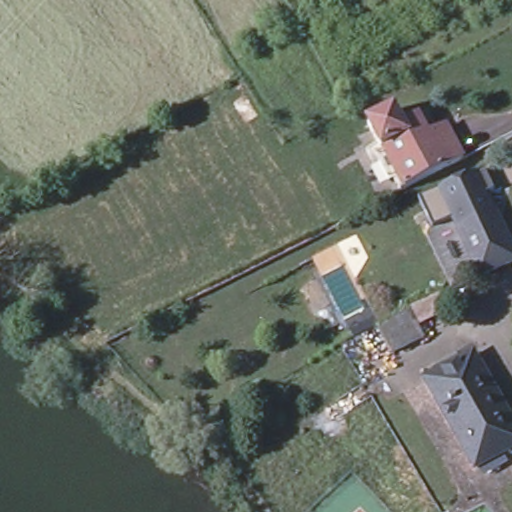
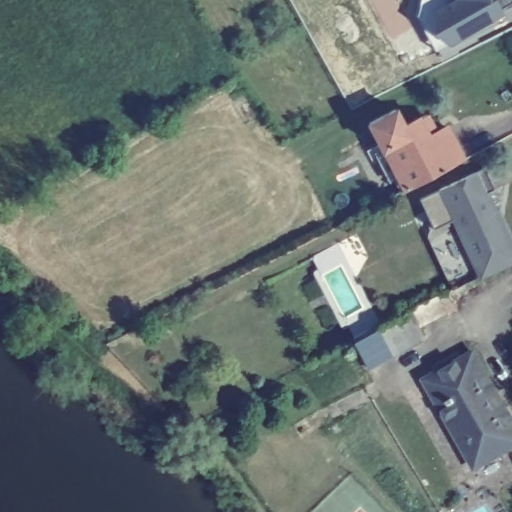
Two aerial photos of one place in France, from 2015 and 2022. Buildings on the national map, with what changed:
new [(420,0),(511,0),(512,1),(500,7),(504,14),(448,45),(446,42),(434,49),(415,16),(420,0)]
unchanged [(399,184),(396,186),(381,158),(387,155),(374,129),(401,115),(409,131),(424,124),(434,142),(452,132),(469,165),(411,195),(406,197),(399,184)]
unchanged [(463,219),(466,225),(501,208),(512,230),(512,260),(486,272),(477,277),(451,225),(463,219)]
unchanged [(425,348),(394,363),(379,337),(411,322),(417,332),(425,348)]
unchanged [(512,417),(512,448),(477,468),(427,381),(476,353),(512,417)]

